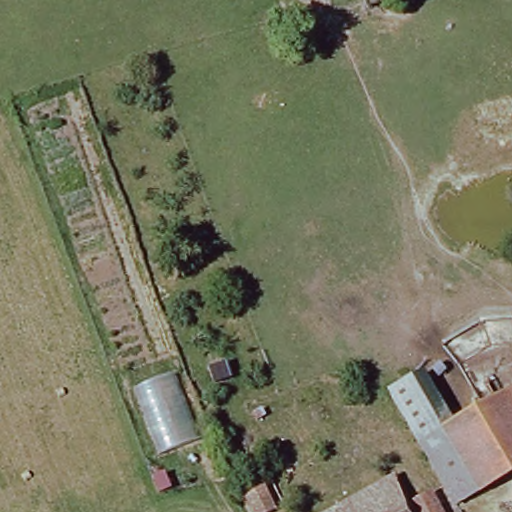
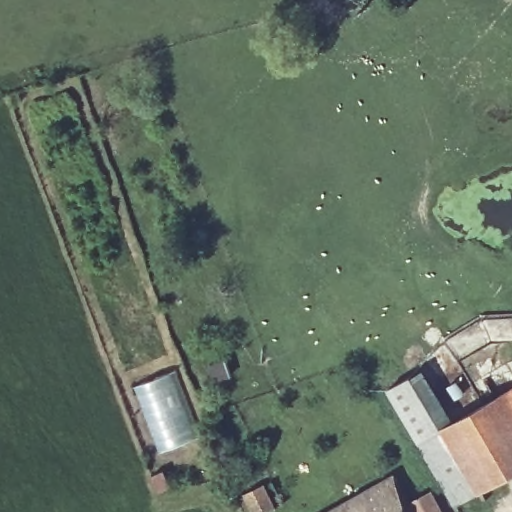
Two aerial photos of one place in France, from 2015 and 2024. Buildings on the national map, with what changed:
unchanged [(446,432),(422,446),(397,403),(391,392),(415,378),(422,392),(446,432)]
unchanged [(512,394),(512,477),(458,508),(422,446),(446,432),(512,394)]
unchanged [(338,512),(390,482),(407,512),(338,512)]
unchanged [(277,512),(254,512),(246,495),(266,485),(277,512)]
unchanged [(428,497),(434,512),(419,512),(415,503),(428,497)]

